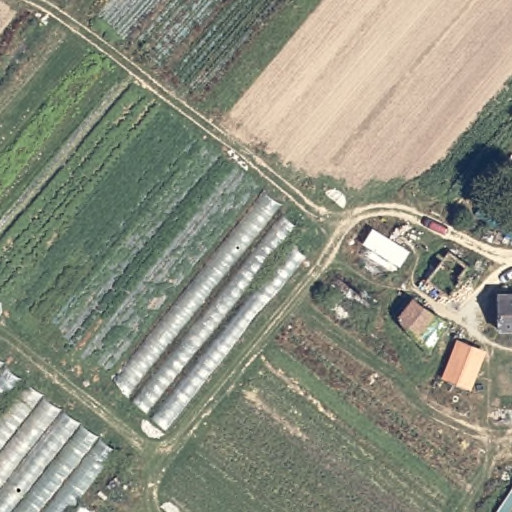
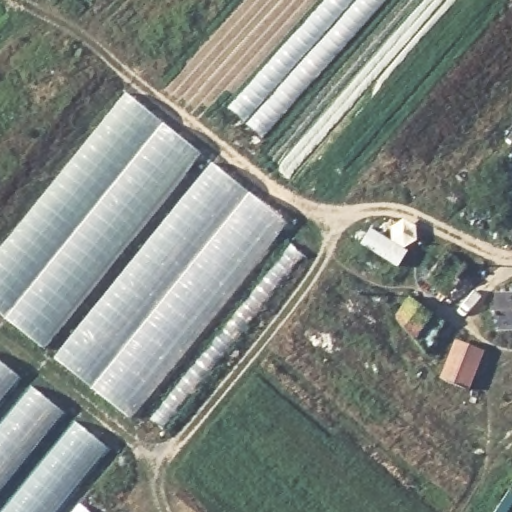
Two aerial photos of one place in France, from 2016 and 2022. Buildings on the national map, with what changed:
new [(202,153),(45,348),(0,312),(0,250),(126,93),(202,153)]
new [(213,162),(288,223),(131,418),(56,357),(213,162)]
unchanged [(423,278),(448,246),(469,262),(459,273),(462,275),(445,296),(423,278)]
unchanged [(394,315),(410,295),(439,316),(419,340),(394,315)]
unchanged [(494,324),(492,298),(512,297),(512,324),(494,324)]
unchanged [(442,379),(444,374),(453,352),(470,359),(459,386),(442,379)]
new [(80,422),(10,512),(0,512),(0,451),(46,393),(80,422)]

